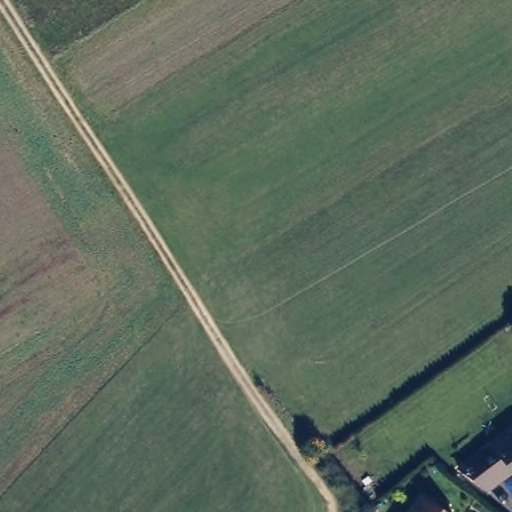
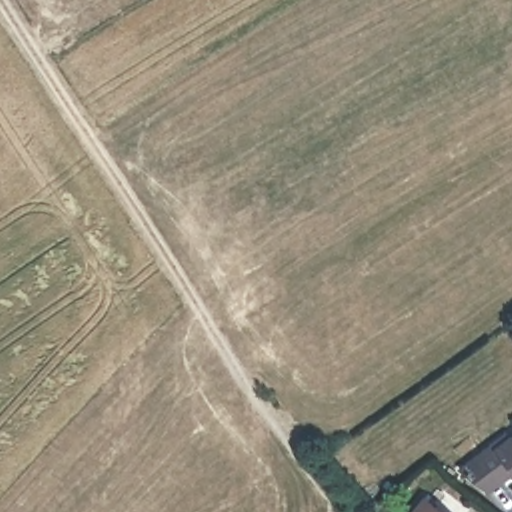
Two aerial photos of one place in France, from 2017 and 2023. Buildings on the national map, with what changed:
unchanged [(484,486),(458,466),(504,431),(508,435),(512,432),(512,473),(509,468),(484,486)]
unchanged [(421,493),(443,512),(406,512),(421,493)]

